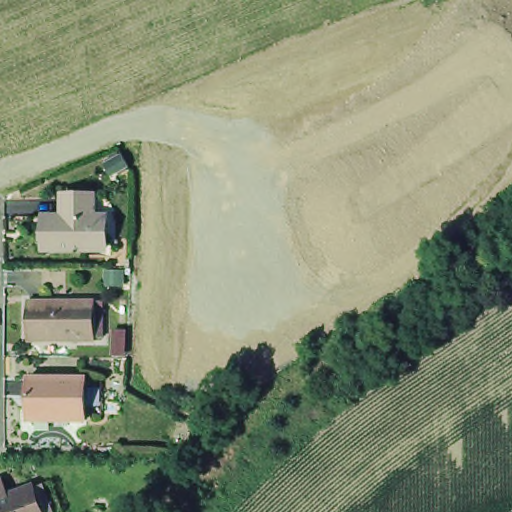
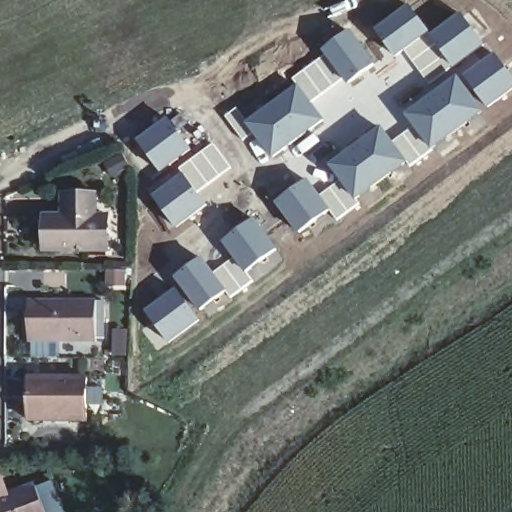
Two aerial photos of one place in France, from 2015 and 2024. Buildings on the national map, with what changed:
new [(404,51),(394,58),(374,30),(411,4),(432,31),(461,10),(485,44),(452,69),(446,64),(424,80),(404,51)]
new [(349,29),(375,64),(346,85),(341,80),(321,55),(319,51),(349,29)]
new [(494,51),(512,75),(512,88),(484,109),(464,75),(494,51)]
new [(321,55),(341,80),(312,103),(296,84),(291,77),(321,55)]
new [(457,74),(461,77),(464,75),(484,109),(424,155),(419,150),(424,146),(403,114),(457,74)]
new [(238,105),(248,119),(296,84),(312,103),(325,120),(269,160),(251,135),(243,141),(223,116),(238,105)]
new [(168,116),(191,150),(161,174),(135,140),(168,116)]
new [(319,195),(338,180),(326,164),(381,125),(393,140),(405,131),(419,150),(424,155),(410,165),(408,161),(355,201),(358,205),(337,220),(329,211),(296,234),(274,204),(306,178),(319,195)]
new [(214,141),(233,167),(199,192),(181,172),(178,168),(214,141)]
new [(181,172),(199,192),(208,205),(175,230),(149,195),(181,172)]
unchanged [(100,245),(45,246),(45,213),(64,212),(64,191),(94,190),(95,212),(105,212),(106,226),(106,245),(100,245)]
new [(213,271),(231,257),(220,242),(255,217),(278,250),(247,274),(253,281),(230,298),(226,292),(198,315),(178,286),(173,278),(201,257),(213,271)]
new [(178,286),(198,315),(201,320),(169,343),(144,311),(178,286)]
unchanged [(19,337),(19,297),(86,296),(86,297),(94,297),(94,333),(87,333),(87,336),(19,337)]
unchanged [(26,421),(25,379),(83,377),(83,420),(26,421)]
unchanged [(0,486),(1,485),(7,501),(27,494),(33,492),(40,512),(0,512),(0,486)]

